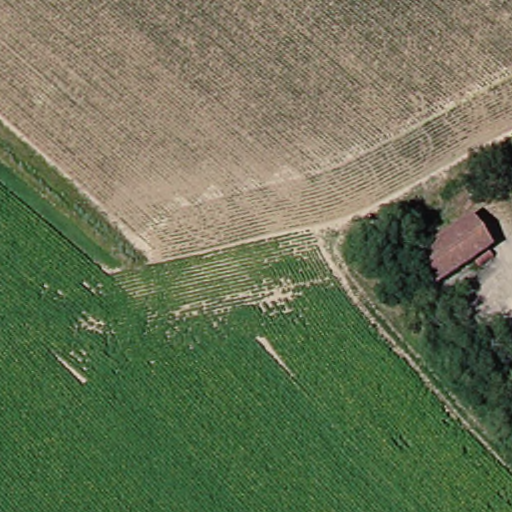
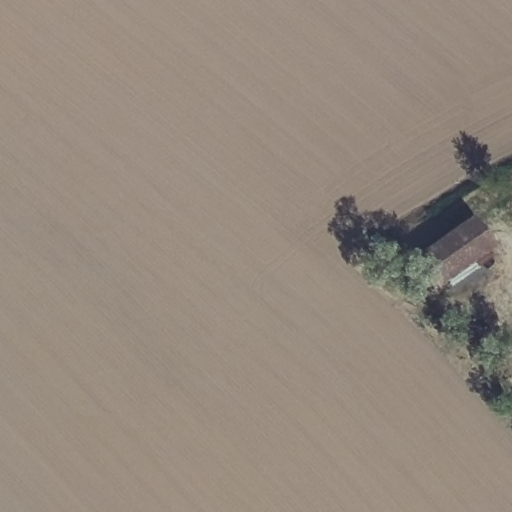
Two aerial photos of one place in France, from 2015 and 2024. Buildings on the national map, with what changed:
unchanged [(402,259),(454,218),(477,245),(424,288),(402,259)]

